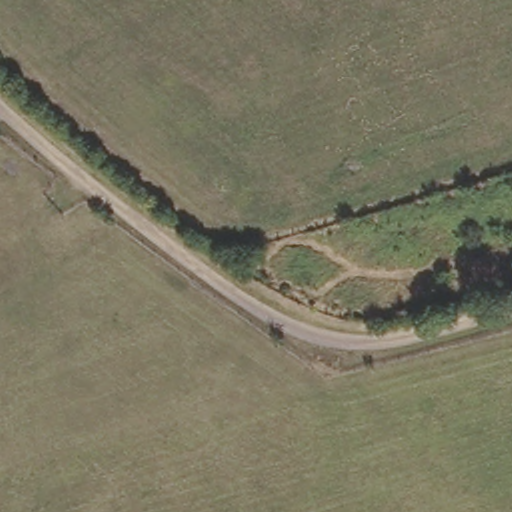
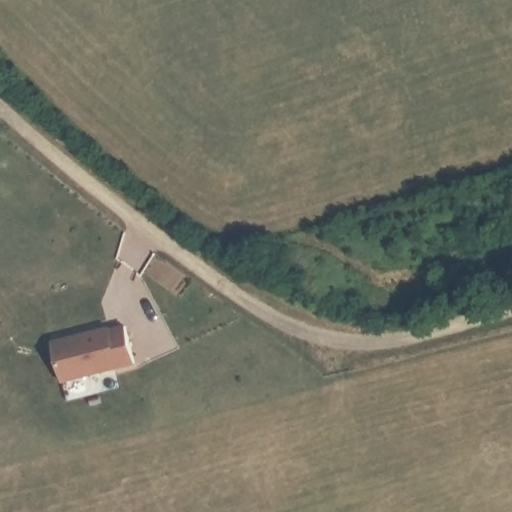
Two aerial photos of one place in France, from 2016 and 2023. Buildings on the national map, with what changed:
new [(51,337),(109,324),(110,327),(125,324),(134,363),(60,381),(51,337)]

